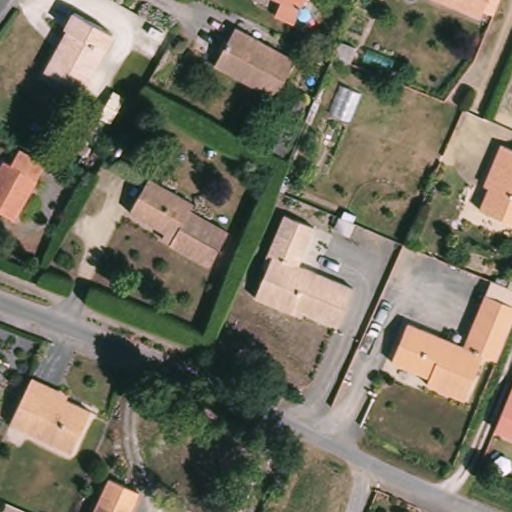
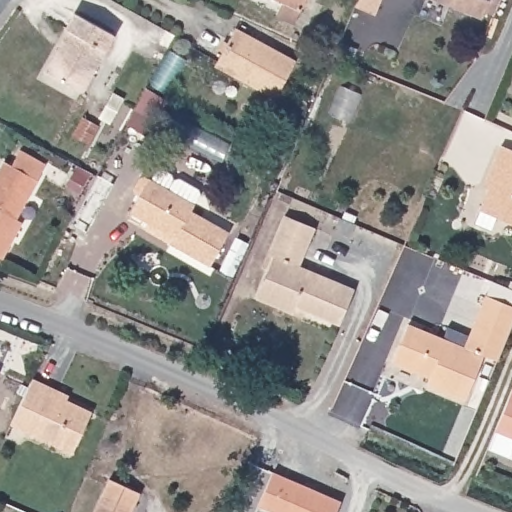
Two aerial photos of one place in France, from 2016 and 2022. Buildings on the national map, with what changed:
unchanged [(297,9),(292,22),(273,14),(279,1),(278,0),(301,0),(297,9)]
unchanged [(477,22),(426,0),(486,0),(477,22)]
unchanged [(63,34),(72,19),(110,40),(78,95),(44,75),(67,36),(63,34)]
unchanged [(298,60),(278,97),(218,66),(238,27),(298,60)]
unchanged [(308,102),(288,147),(279,142),(299,97),(308,102)]
unchanged [(99,126),(89,144),(73,134),(83,117),(99,126)]
unchanged [(512,148),(512,221),(482,209),(491,187),(486,185),(496,161),(503,144),(512,148)]
unchanged [(21,155),(47,169),(16,224),(0,215),(0,175),(6,166),(13,170),(21,155)]
unchanged [(162,236),(129,217),(127,217),(145,184),(190,209),(187,215),(225,237),(207,269),(169,248),(159,242),(162,236)]
unchanged [(263,270),(285,218),(316,232),(300,268),(354,292),(338,328),(295,309),(292,316),(255,300),(267,272),(263,270)]
unchanged [(462,352),(484,300),(512,312),(512,321),(494,366),(479,359),(460,403),(424,388),(426,383),(389,367),(405,328),(462,352)]
unchanged [(68,396),(66,402),(91,413),(72,453),(11,424),(33,379),(50,387),(68,396)]
unchanged [(497,429),(512,391),(512,436),(497,429)]
new [(257,505),(272,471),(340,501),(335,512),(275,512),(257,505)]
unchanged [(126,512),(90,512),(105,480),(135,493),(126,512)]

